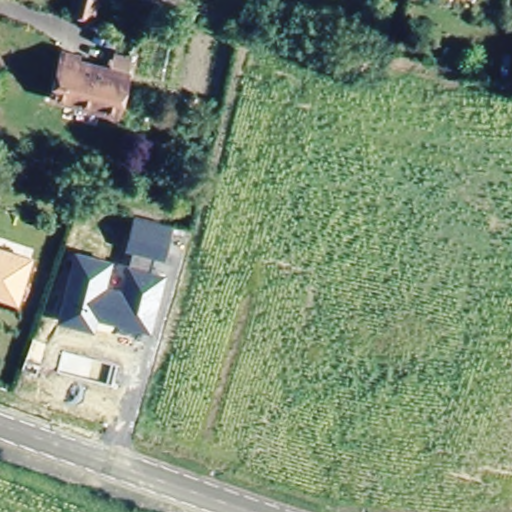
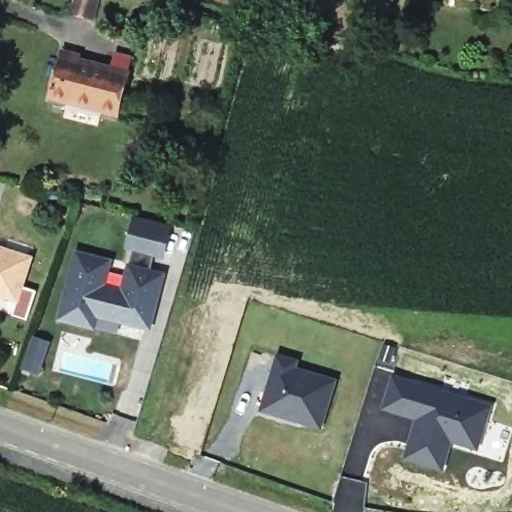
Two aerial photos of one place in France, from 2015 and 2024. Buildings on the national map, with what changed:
unchanged [(97,0),(92,20),(74,16),(78,0),(97,0)]
unchanged [(201,18),(217,22),(215,30),(199,26),(201,18)]
unchanged [(60,48),(79,52),(77,59),(126,70),(114,114),(49,97),(60,48)]
unchanged [(174,225),(165,258),(155,255),(152,269),(167,272),(152,330),(97,316),(94,328),(58,320),(75,250),(113,258),(107,284),(122,288),(127,262),(130,263),(134,250),(127,248),(133,215),(174,225)]
unchanged [(0,245),(30,253),(19,296),(0,292),(0,245)]
new [(278,351),(301,358),(298,365),(338,378),(322,430),(259,411),(278,351)]
new [(381,363),(392,370),(495,402),(478,452),(453,443),(443,472),(402,460),(414,420),(379,408),(386,386),(382,385),(381,386),(370,383),(381,363)]
new [(341,475),(367,482),(362,512),(332,512),(341,475)]

